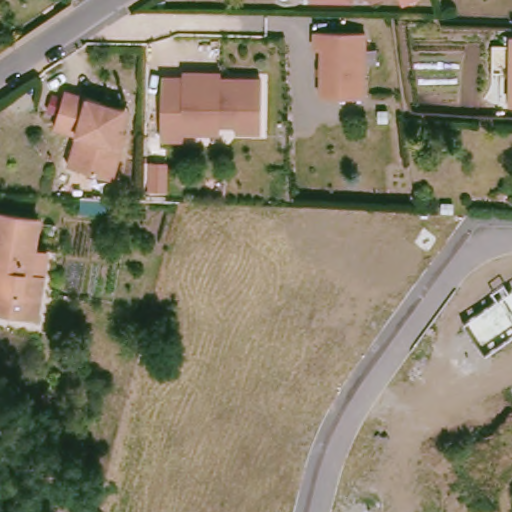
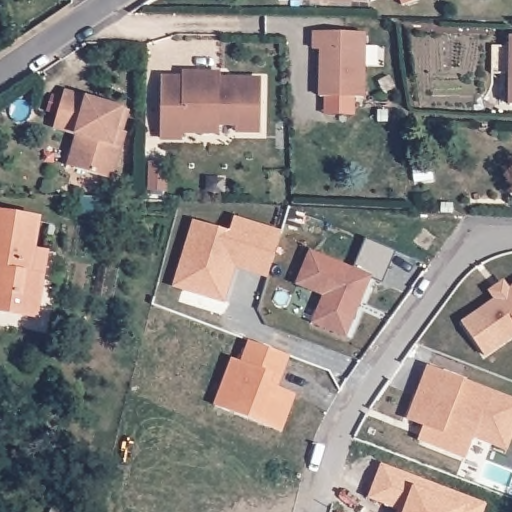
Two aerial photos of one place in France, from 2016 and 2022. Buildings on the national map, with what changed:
unchanged [(371,6),(367,0),(385,0),(371,6)]
unchanged [(366,35),(366,102),(321,102),(321,52),(313,52),(313,35),(366,35)]
unchanged [(508,108),(508,77),(490,77),(490,49),(509,49),(509,40),(512,40),(512,108),(508,108)]
unchanged [(183,132),(183,138),(160,138),(160,76),(182,76),(182,71),(196,71),(207,70),(221,71),(221,76),(264,76),(264,127),(238,127),(238,119),(221,119),(221,132),(183,132)]
unchanged [(79,135),(57,128),(68,92),(125,110),(131,112),(124,132),(128,134),(113,179),(78,168),(69,165),(79,135)]
new [(432,163),(434,178),(415,180),(413,165),(432,163)]
new [(444,201),(455,202),(454,211),(444,210),(444,201)]
unchanged [(32,264),(39,265),(38,275),(43,276),(37,315),(0,309),(0,211),(39,218),(32,264)]
new [(279,233),(269,273),(228,263),(226,270),(230,278),(223,299),(176,285),(195,221),(243,236),(246,223),(279,233)]
new [(313,324),(324,294),(296,284),(309,250),(371,276),(346,337),(313,324)]
unchanged [(498,301),(492,291),(504,284),(509,292),(512,290),(512,336),(485,355),(463,323),(498,301)]
new [(281,432),(214,405),(232,358),(239,361),(248,340),(289,356),(283,377),(274,375),(271,385),(296,394),(281,432)]
new [(484,403),(489,391),(512,400),(512,431),(506,446),(471,434),(464,454),(429,441),(433,427),(411,418),(429,368),(463,381),(459,393),(484,403)]

